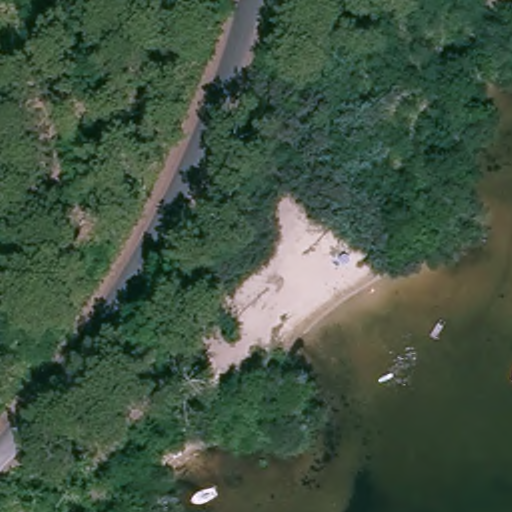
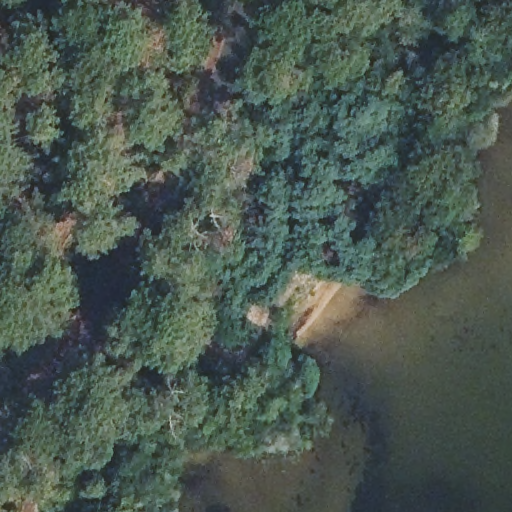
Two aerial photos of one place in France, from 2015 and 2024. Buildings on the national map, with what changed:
unchanged [(418,88),(427,100),(407,118),(398,106),(418,88)]
unchanged [(314,171),(334,190),(295,226),(277,206),(314,171)]
unchanged [(211,272),(225,259),(246,278),(234,291),(211,272)]

